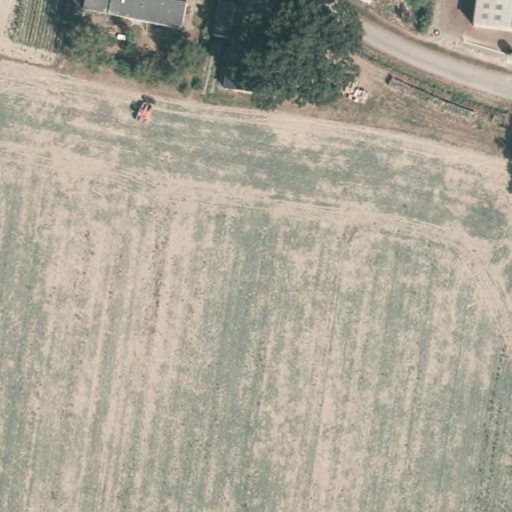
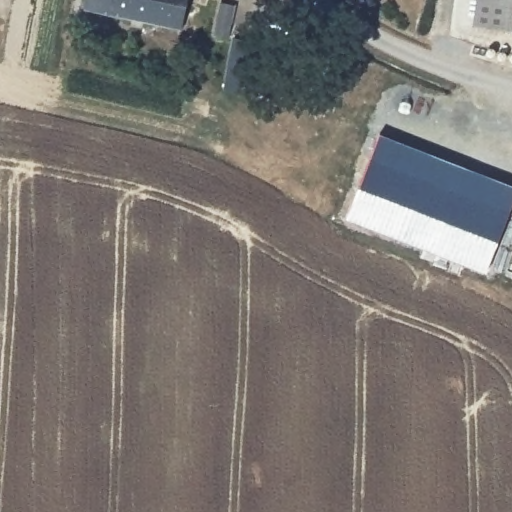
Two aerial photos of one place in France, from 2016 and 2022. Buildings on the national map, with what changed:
unchanged [(102,0),(203,0),(196,35),(99,15),(102,0)]
unchanged [(366,9),(351,0),(371,0),(366,9)]
unchanged [(512,39),(469,31),(474,0),(512,0),(512,39)]
new [(346,219),(378,133),(512,185),(512,202),(487,273),(346,219)]

